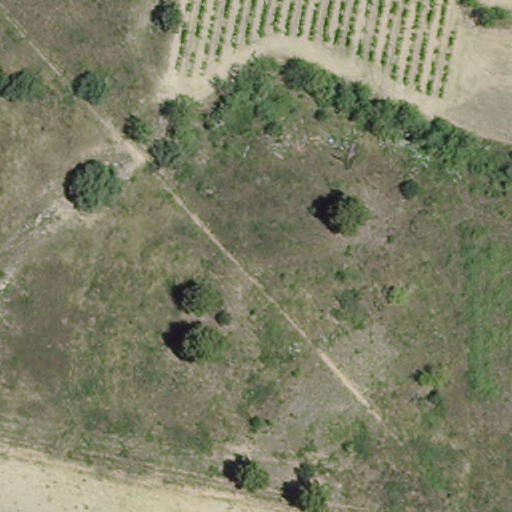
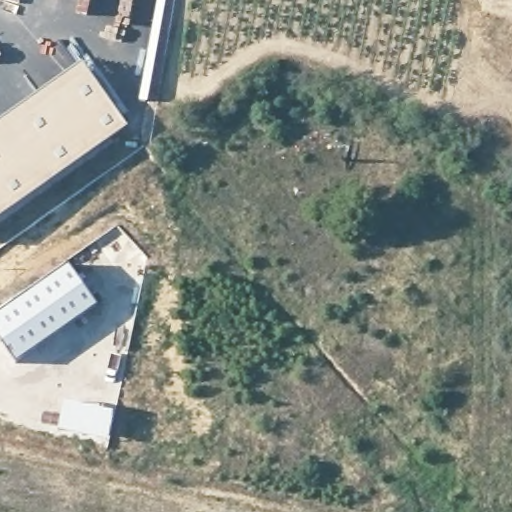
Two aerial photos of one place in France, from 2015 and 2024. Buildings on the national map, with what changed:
new [(0,215),(0,120),(82,62),(128,127),(0,215)]
new [(97,306),(15,362),(0,339),(0,309),(67,262),(97,306)]
new [(64,402),(115,412),(109,441),(58,430),(64,402)]

